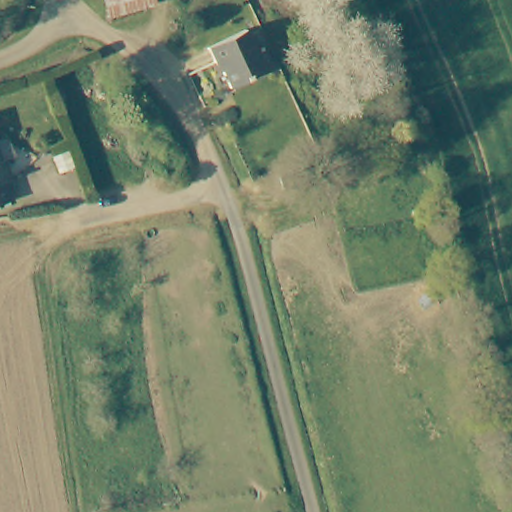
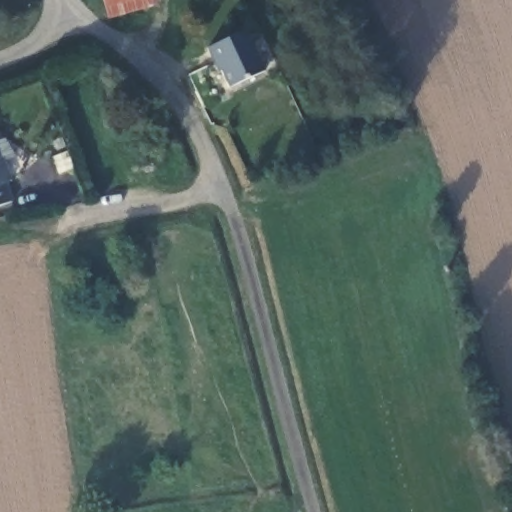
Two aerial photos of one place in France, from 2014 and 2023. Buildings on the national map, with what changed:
unchanged [(264,75),(229,89),(212,47),(247,33),(264,75)]
unchanged [(9,138),(14,157),(6,160),(12,181),(7,182),(14,204),(0,208),(0,141),(9,138)]
unchanged [(57,157),(62,176),(51,180),(45,162),(57,157)]

